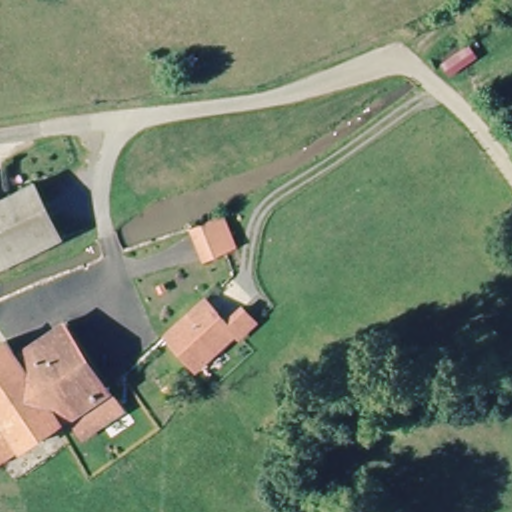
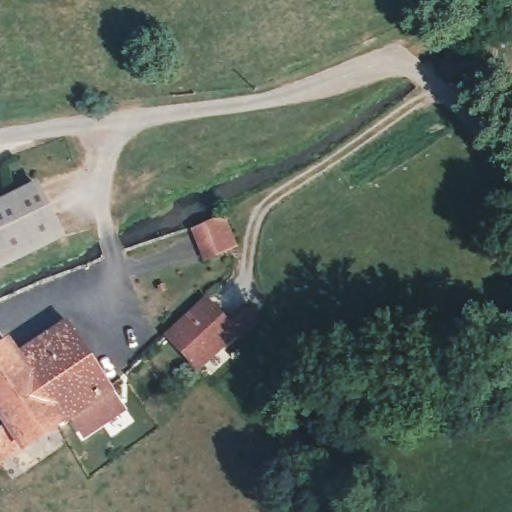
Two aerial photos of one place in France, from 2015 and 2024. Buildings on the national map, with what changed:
unchanged [(64,243),(0,272),(0,202),(39,186),(64,243)]
unchanged [(226,216),(237,244),(207,255),(196,227),(210,222),(226,216)]
unchanged [(227,321),(241,306),(255,320),(240,335),(237,330),(199,368),(166,337),(205,298),(227,321)]
unchanged [(69,411),(17,450),(0,428),(0,350),(9,361),(65,320),(75,334),(66,341),(101,388),(114,405),(82,428),(69,411)]
unchanged [(0,428),(17,450),(0,464),(0,428)]

